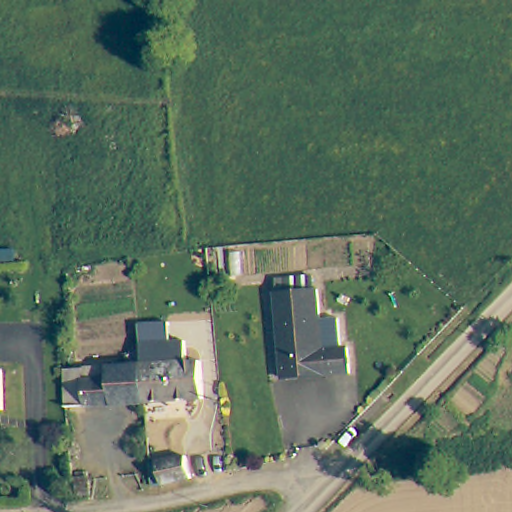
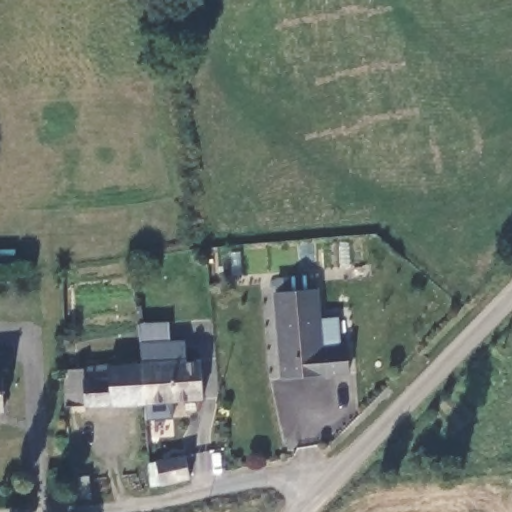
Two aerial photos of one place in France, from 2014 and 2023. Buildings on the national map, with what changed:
unchanged [(330,353),(339,353),(342,376),(274,383),(265,296),(269,295),(269,278),(298,276),(299,293),(307,292),(309,321),(329,321),(330,353)]
unchanged [(169,328),(169,347),(185,347),(185,368),(200,367),(202,403),(149,405),(146,369),(143,330),(169,328)]
unchanged [(146,369),(149,405),(70,408),(69,390),(69,371),(146,369)]
unchanged [(159,495),(155,473),(181,468),(187,489),(159,495)]

